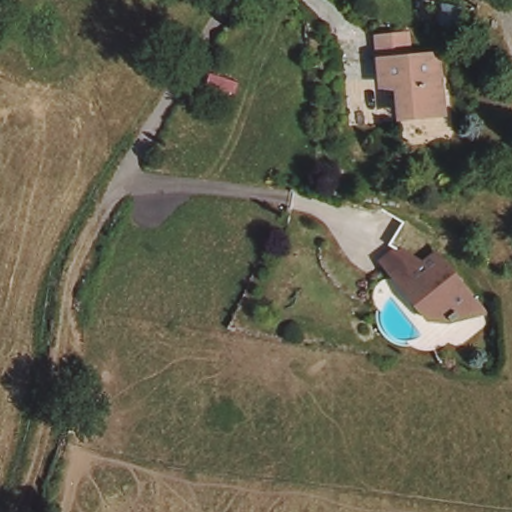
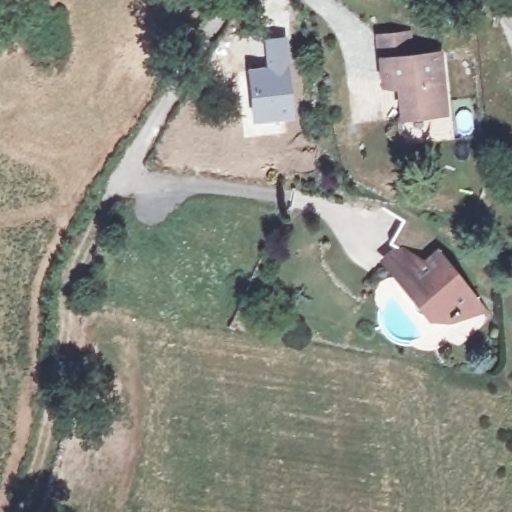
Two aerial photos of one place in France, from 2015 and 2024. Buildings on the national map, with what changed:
unchanged [(390,83),(379,81),(376,57),(374,35),(404,32),(407,54),(436,51),(442,112),(402,116),(394,117),(390,83)]
new [(264,64),(262,36),(289,35),(293,118),(251,122),(246,66),(264,64)]
unchanged [(468,325),(462,329),(459,326),(457,327),(439,324),(419,299),(419,294),(394,268),(405,251),(400,247),(416,227),(433,241),(437,244),(434,249),(425,260),(433,269),(435,268),(444,260),(482,307),(464,321),(468,325)]

